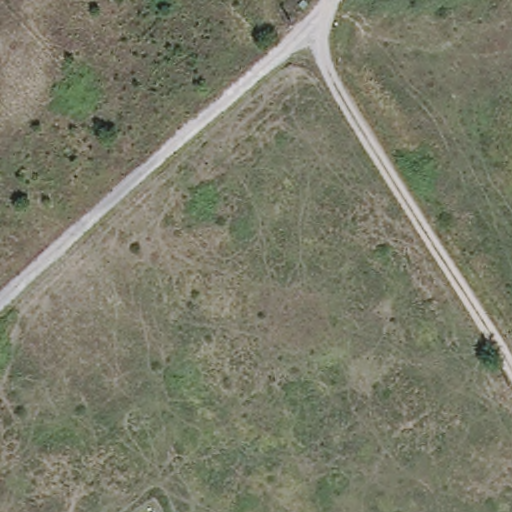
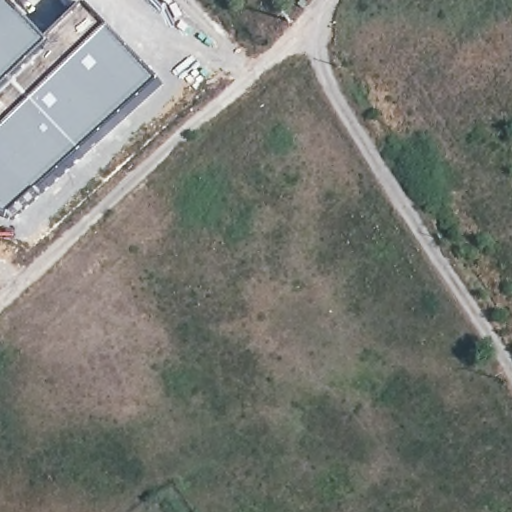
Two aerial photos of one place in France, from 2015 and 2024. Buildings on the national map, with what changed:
new [(51,45),(53,48),(0,103),(0,0),(9,0),(52,44),(51,45)]
new [(51,45),(52,44),(88,7),(108,28),(11,122),(8,119),(0,125),(0,103),(53,48),(51,45)]
new [(11,122),(108,28),(161,83),(10,219),(0,215),(0,133),(6,127),(11,122)]

